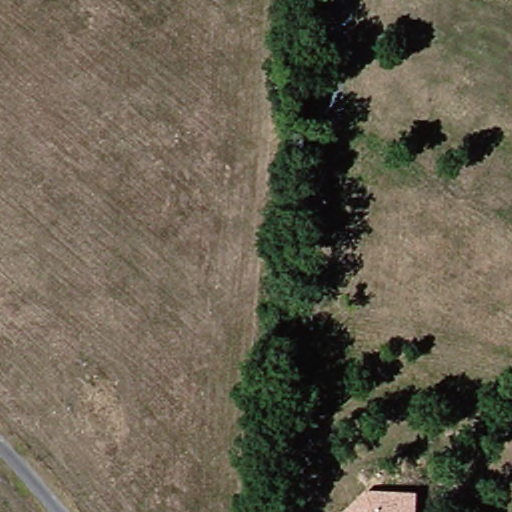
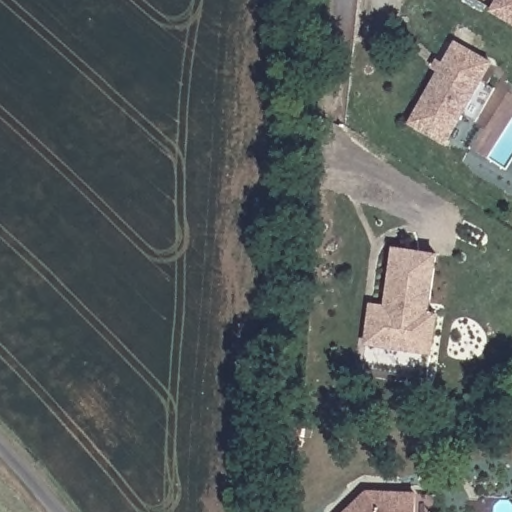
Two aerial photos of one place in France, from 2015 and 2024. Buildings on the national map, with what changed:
new [(489,10),(495,0),(512,0),(512,24),(489,10)]
new [(495,61),(447,146),(406,124),(455,39),(495,61)]
new [(436,254),(427,311),(437,312),(431,375),(365,368),(372,305),(387,307),(395,249),(436,254)]
unchanged [(373,503),(422,502),(422,512),(364,512),(373,503)]

